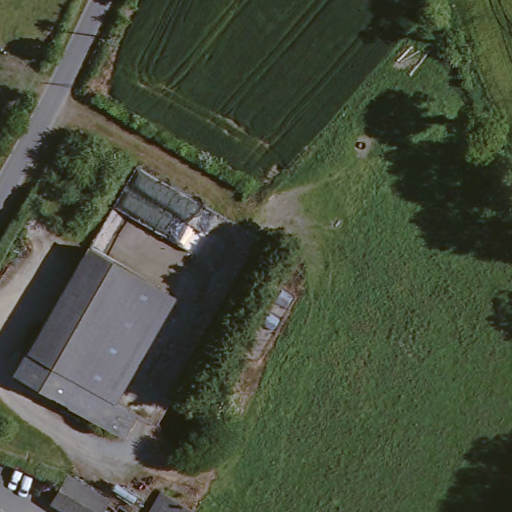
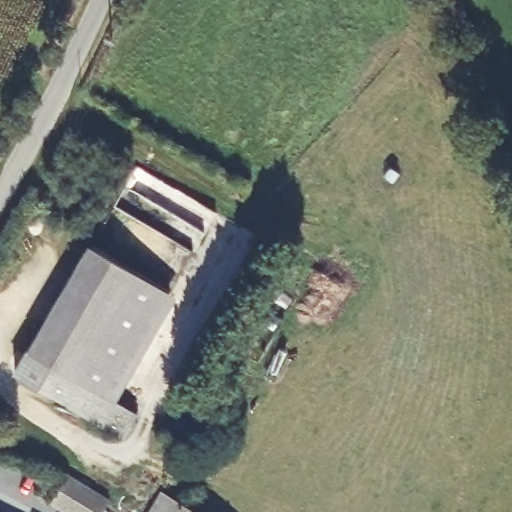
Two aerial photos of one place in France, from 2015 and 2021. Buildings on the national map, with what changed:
unchanged [(91,252),(169,297),(107,400),(26,355),(91,252)]
unchanged [(107,400),(140,418),(125,442),(12,378),(26,355),(107,400)]
unchanged [(48,509),(52,502),(66,481),(107,504),(102,512),(53,512),(48,509)]
unchanged [(156,499),(179,512),(149,512),(156,499)]

